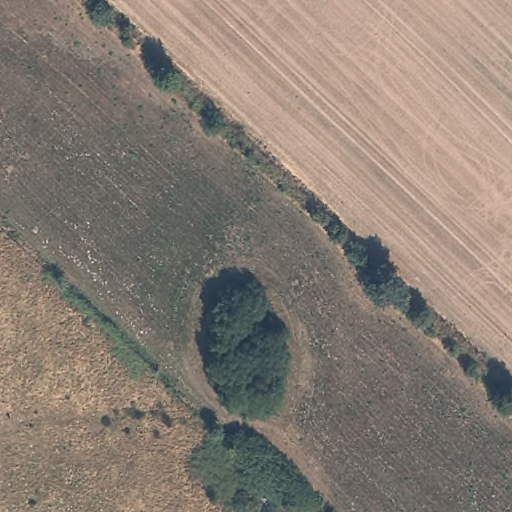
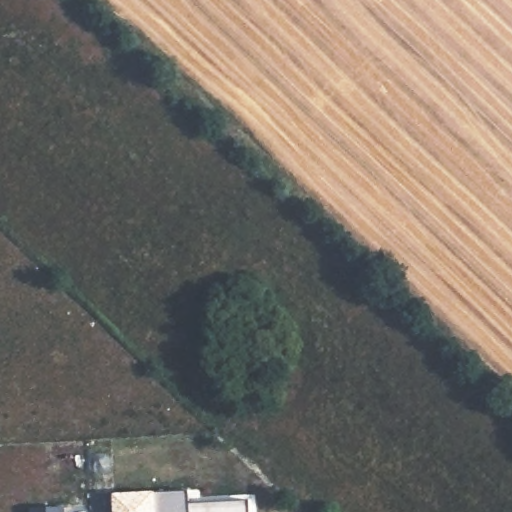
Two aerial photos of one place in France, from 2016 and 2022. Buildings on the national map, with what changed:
new [(114,495),(190,491),(191,504),(251,501),(252,512),(115,512),(114,495)]
new [(31,508),(66,508),(66,512),(32,512),(31,508)]

